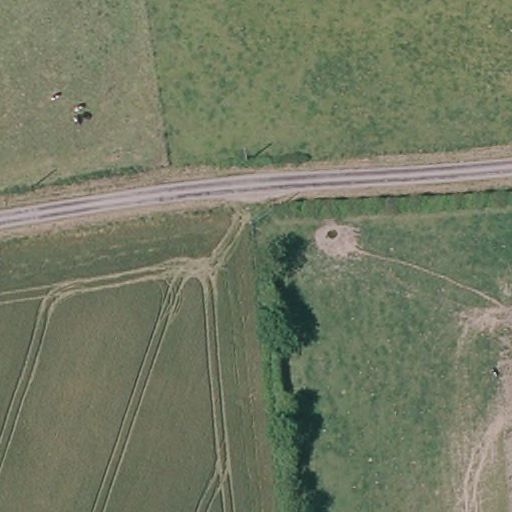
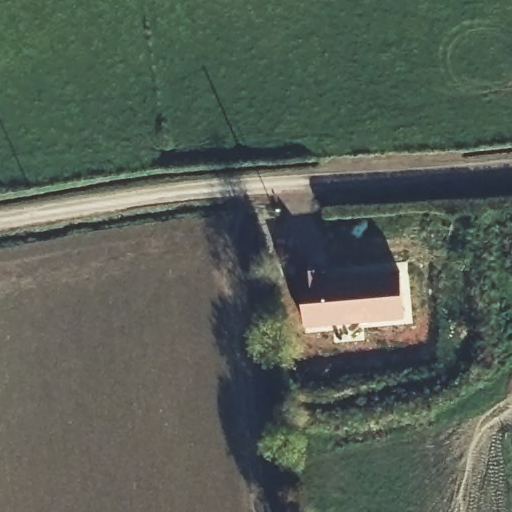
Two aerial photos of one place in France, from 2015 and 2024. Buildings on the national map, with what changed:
new [(305,327),(300,272),(322,270),(323,276),(400,271),(405,319),(305,327)]

